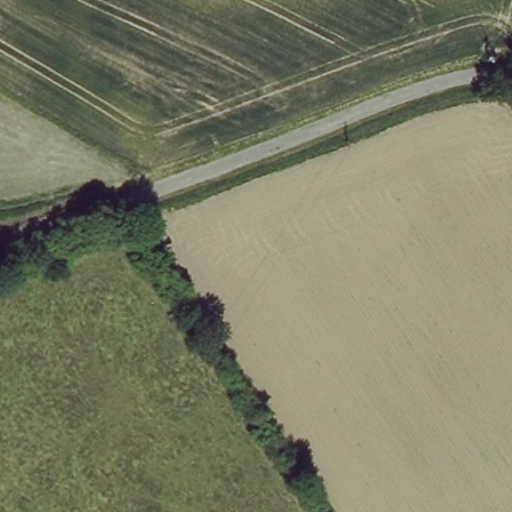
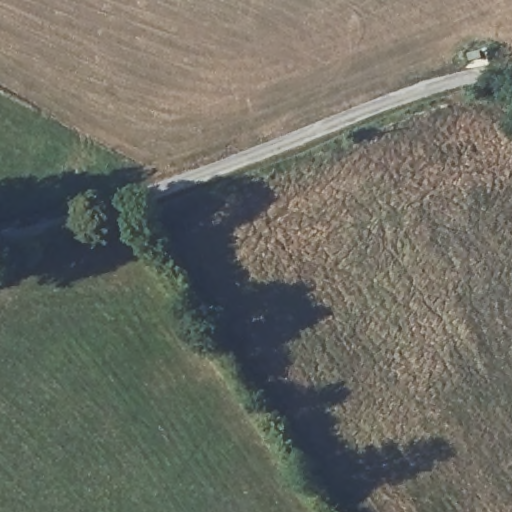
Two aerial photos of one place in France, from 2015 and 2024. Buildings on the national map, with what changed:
[]

